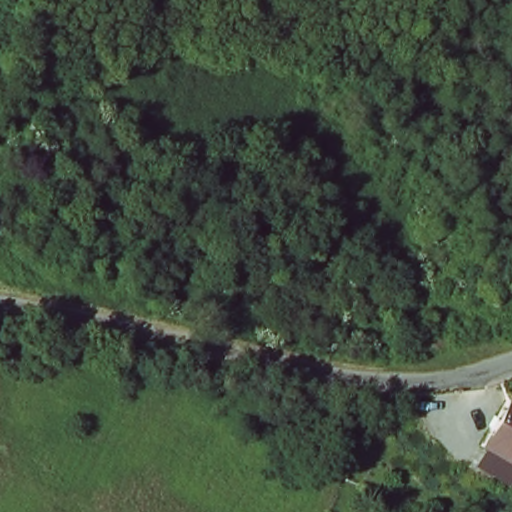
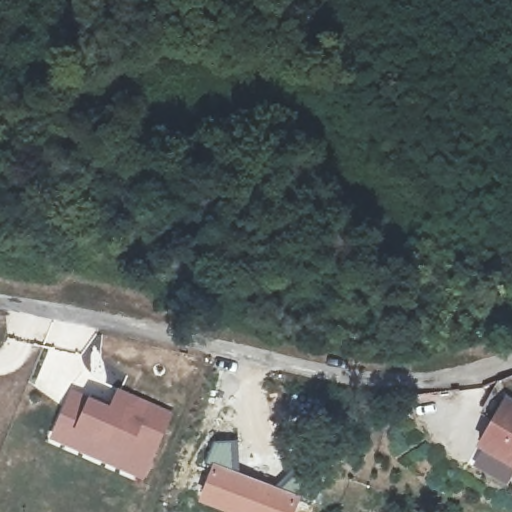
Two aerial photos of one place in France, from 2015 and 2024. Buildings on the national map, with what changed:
new [(110,405),(118,387),(173,412),(145,482),(50,439),(71,389),(110,405)]
unchanged [(512,466),(478,445),(506,399),(512,402),(512,466)]
new [(292,470),(311,482),(298,512),(224,512),(196,502),(211,462),(213,439),(237,439),(237,471),(280,487),(292,470)]

